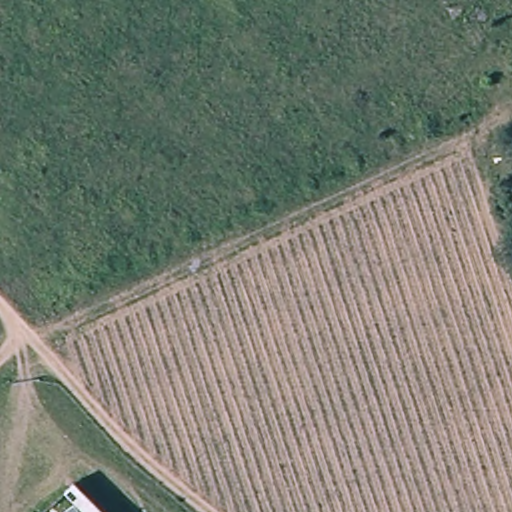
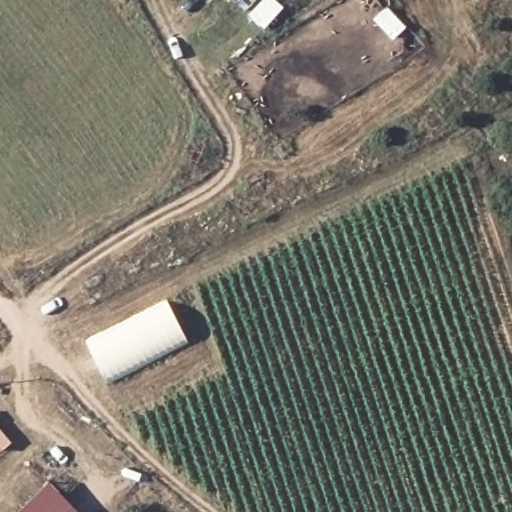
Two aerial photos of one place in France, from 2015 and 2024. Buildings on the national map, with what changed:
new [(108,385),(86,339),(167,298),(188,343),(108,385)]
new [(50,484),(76,512),(21,512),(50,484)]

